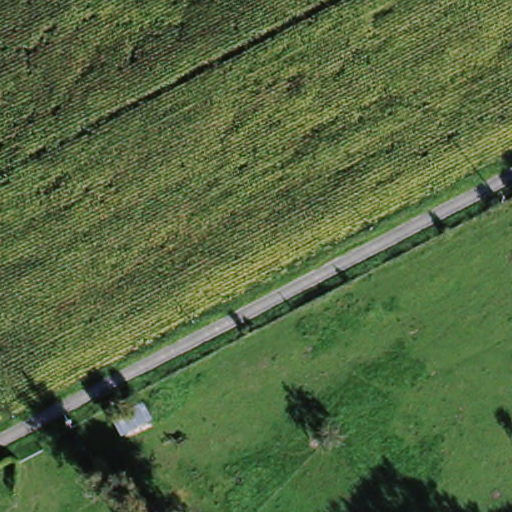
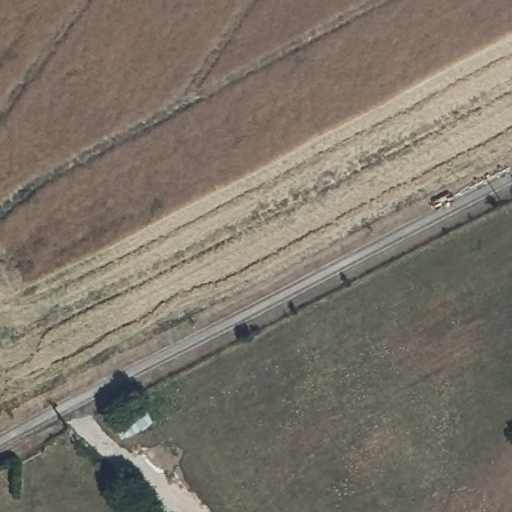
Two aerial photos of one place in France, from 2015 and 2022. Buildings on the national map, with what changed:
unchanged [(145,407),(118,422),(112,410),(138,396),(145,407)]

